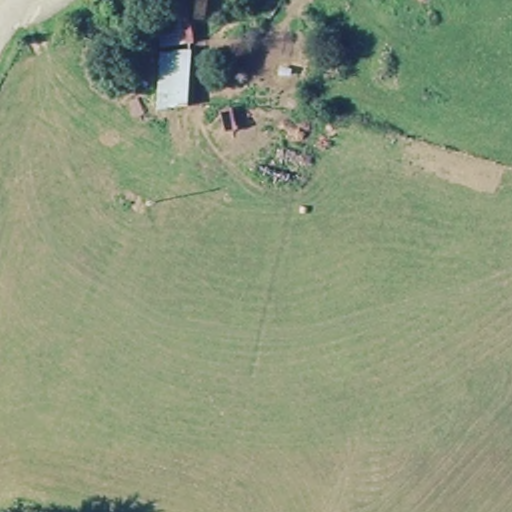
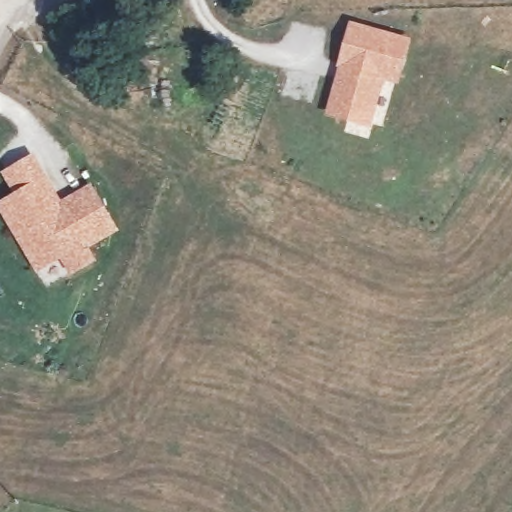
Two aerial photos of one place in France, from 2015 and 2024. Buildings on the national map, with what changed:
demolished [(189,15),(194,44),(160,51),(150,0),(214,0),(215,6),(189,15)]
new [(412,39),(400,87),(384,81),(372,129),(325,119),(349,22),(412,39)]
new [(91,183),(119,231),(90,249),(96,261),(69,277),(60,261),(36,275),(0,214),(0,203),(14,195),(1,174),(34,155),(62,201),(91,183)]

